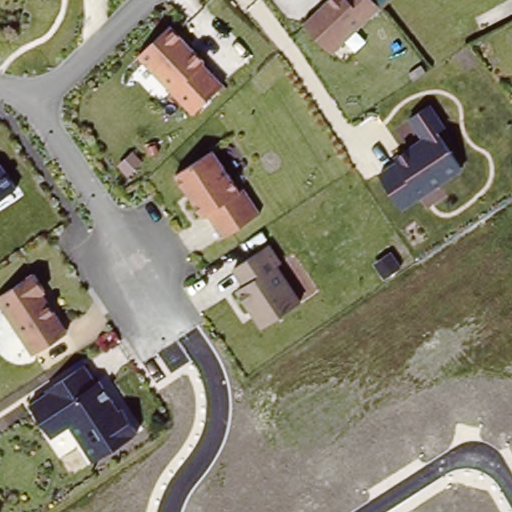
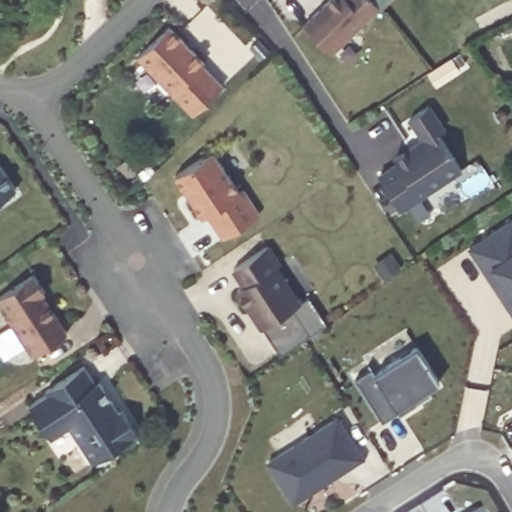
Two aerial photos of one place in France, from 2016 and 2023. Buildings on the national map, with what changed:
unchanged [(334,56),(303,25),(328,0),(391,0),(334,56)]
unchanged [(224,85),(191,114),(135,55),(168,25),(224,85)]
unchanged [(446,130),(440,134),(464,170),(404,209),(383,176),(401,164),(398,160),(427,140),(413,120),(432,107),(446,130)]
unchanged [(240,192),(244,190),(260,213),(221,236),(206,215),(201,217),(173,175),(213,150),(240,192)]
unchanged [(16,189),(0,199),(0,164),(16,189)]
new [(512,314),(469,249),(512,219),(512,314)]
unchanged [(283,265),(278,268),(301,303),(259,328),(234,290),(241,285),(231,270),(269,245),(283,265)]
unchanged [(69,332),(33,356),(0,306),(0,296),(32,275),(69,332)]
new [(301,303),(308,296),(326,323),(280,353),(264,326),(301,303)]
new [(371,368),(378,375),(417,349),(438,381),(424,390),(417,403),(399,413),(398,410),(382,421),(356,378),(371,368)]
unchanged [(96,382),(99,380),(136,433),(91,462),(69,427),(51,437),(28,403),(49,390),(46,383),(82,360),(96,382)]
new [(338,416),(364,458),(293,504),(266,461),(338,416)]

